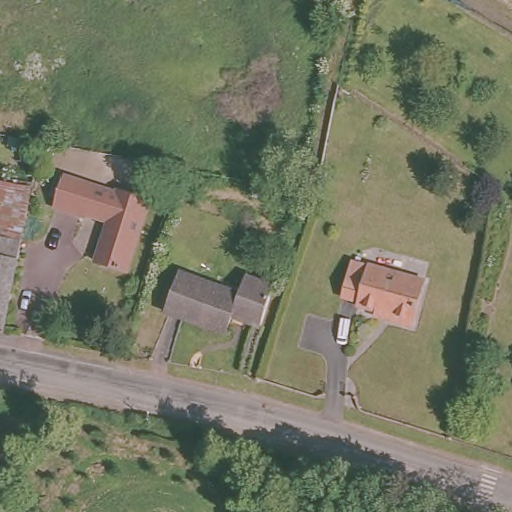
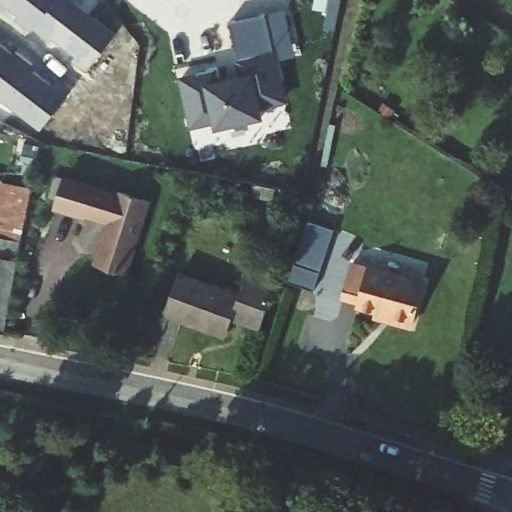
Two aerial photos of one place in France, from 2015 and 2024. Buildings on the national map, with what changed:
new [(87,71),(73,60),(76,56),(53,39),(51,42),(34,28),(32,30),(15,17),(18,14),(0,0),(74,0),(118,31),(87,71)]
new [(285,10),(295,56),(279,60),(270,14),(285,10)]
new [(181,76),(215,67),(218,78),(243,73),(231,22),(270,14),(289,102),(264,107),(266,118),(216,129),(214,123),(192,128),(181,76)]
new [(33,68),(50,84),(55,78),(71,91),(40,130),(0,98),(0,44),(13,55),(16,51),(35,66),(33,68)]
unchanged [(121,195),(123,191),(154,202),(129,272),(99,261),(114,217),(88,208),(87,211),(63,204),(73,179),(121,195)]
unchanged [(0,331),(0,200),(3,184),(30,188),(3,332),(0,331)]
unchanged [(264,203),(243,199),(246,188),(266,192),(264,203)]
new [(309,220),(335,228),(314,290),(289,281),(309,220)]
unchanged [(359,302),(360,296),(347,293),(354,262),(424,281),(413,326),(395,321),(357,310),(359,302)]
unchanged [(226,325),(224,333),(164,312),(179,273),(238,294),(244,276),(273,286),(261,326),(258,336),(226,325)]

